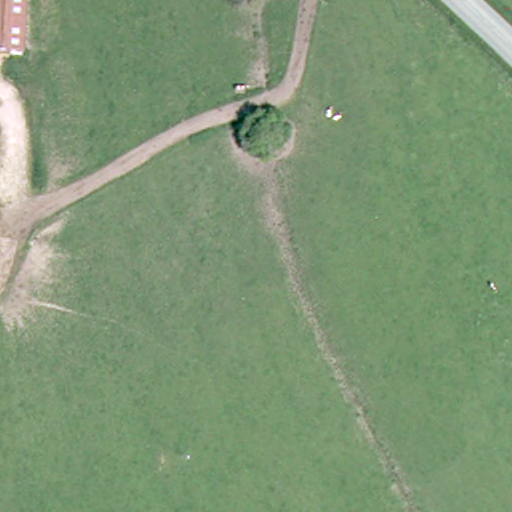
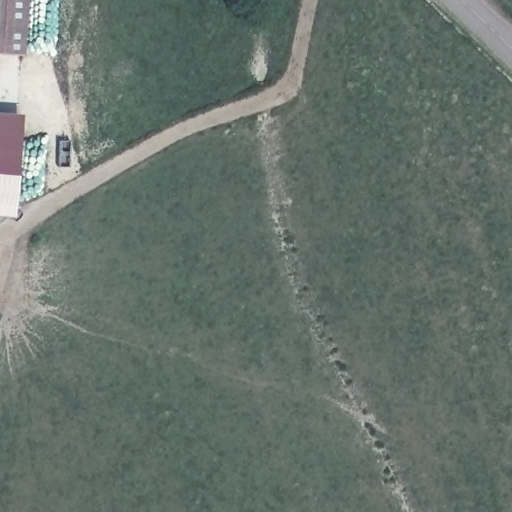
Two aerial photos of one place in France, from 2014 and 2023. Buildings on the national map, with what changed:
unchanged [(18,54),(0,54),(0,0),(21,0),(18,54)]
new [(24,113),(15,216),(0,214),(0,112),(24,113)]

